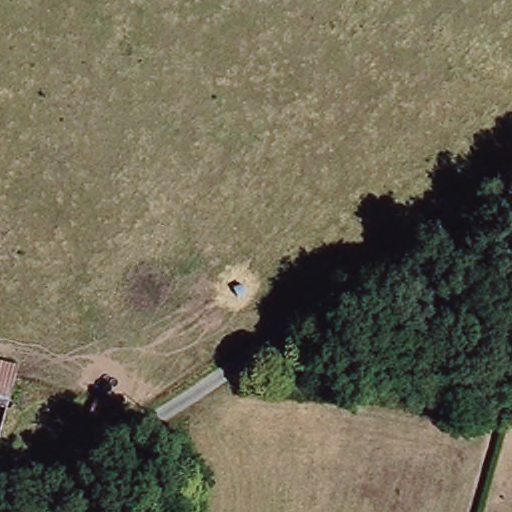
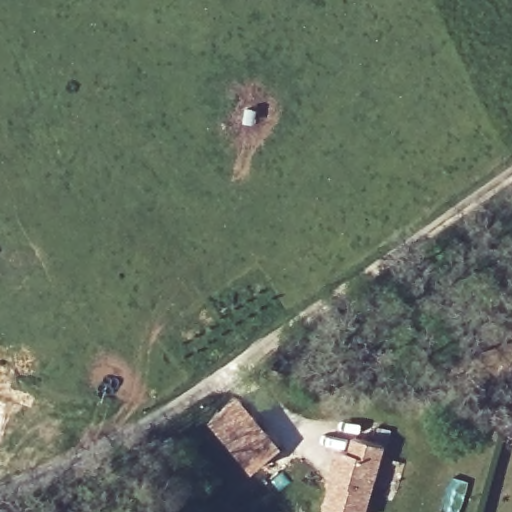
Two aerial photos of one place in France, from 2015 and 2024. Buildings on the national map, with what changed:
unchanged [(0,443),(0,366),(20,371),(0,443)]
new [(239,393),(283,446),(253,469),(210,417),(239,393)]
new [(329,468),(337,445),(347,448),(352,435),(387,445),(367,512),(338,512),(320,507),(329,468)]

